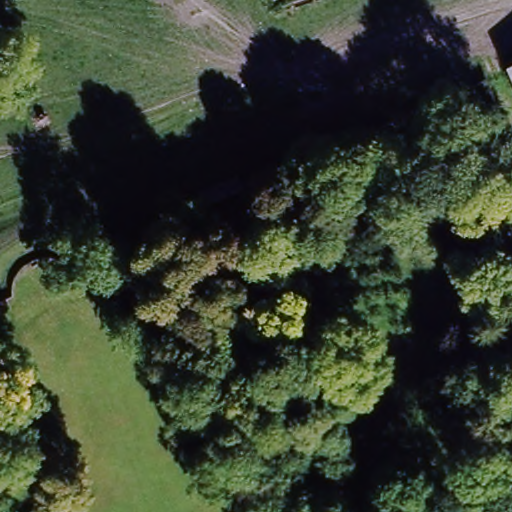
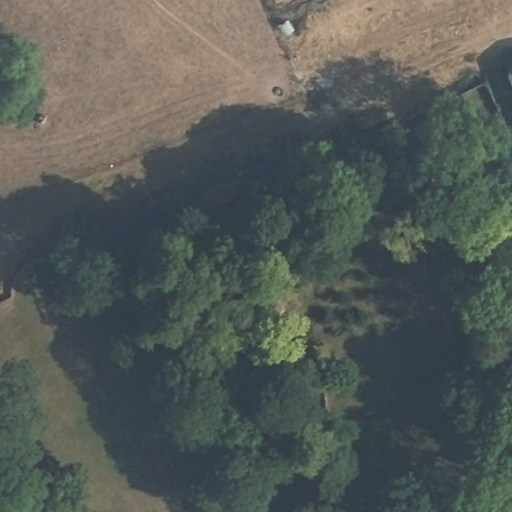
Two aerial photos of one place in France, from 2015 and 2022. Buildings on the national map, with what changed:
unchanged [(504,71),(512,67),(512,90),(504,71)]

